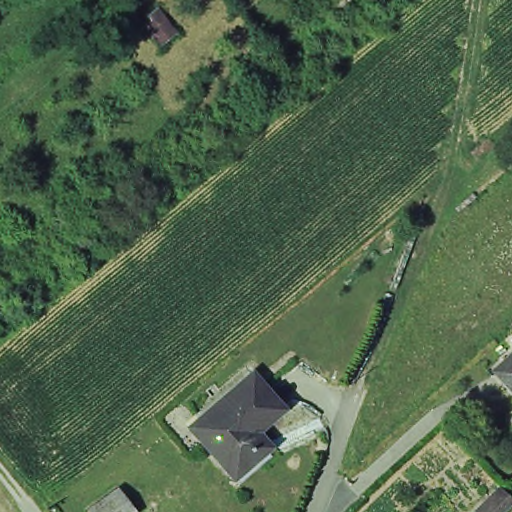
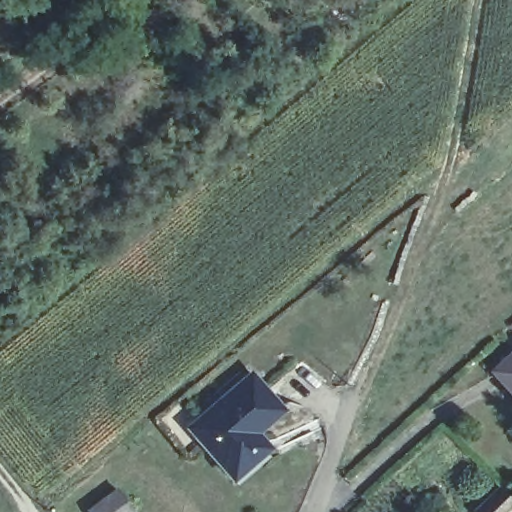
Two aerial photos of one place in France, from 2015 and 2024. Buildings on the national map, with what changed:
unchanged [(157,40),(152,34),(142,20),(157,9),(168,21),(174,29),(157,40)]
unchanged [(512,356),(512,386),(497,370),(512,356)]
unchanged [(237,438),(250,454),(224,475),(197,442),(192,434),(182,423),(192,415),(245,371),(255,383),(275,407),(237,438)]
unchanged [(483,473),(510,502),(499,512),(443,512),(483,473)]
unchanged [(87,504),(115,484),(123,495),(133,509),(130,512),(92,512),(87,504)]

